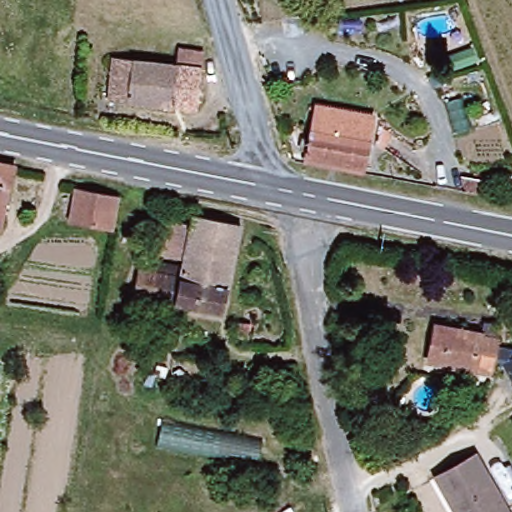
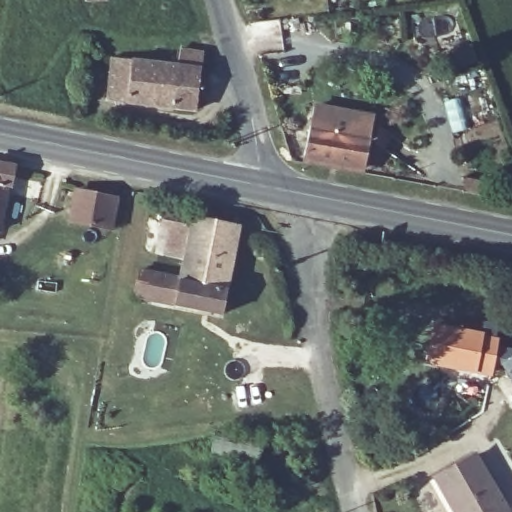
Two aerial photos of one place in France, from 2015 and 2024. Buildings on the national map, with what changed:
unchanged [(102,100),(108,57),(174,66),(176,51),(196,54),(194,69),(189,111),(102,100)]
unchanged [(303,155),(307,131),(370,141),(366,165),(365,177),(302,165),(303,155)]
unchanged [(10,187),(5,186),(0,205),(0,159),(15,162),(10,187)]
unchanged [(68,216),(74,189),(111,195),(104,224),(68,216)]
unchanged [(128,297),(132,275),(175,282),(177,262),(150,258),(158,221),(185,226),(187,217),(233,226),(217,313),(128,297)]
unchanged [(503,362),(487,360),(486,371),(424,360),(432,320),(474,327),(474,332),(494,336),(492,343),(508,346),(508,352),(512,350),(512,378),(503,362)]
unchanged [(476,453),(510,512),(456,512),(436,476),(476,453)]

